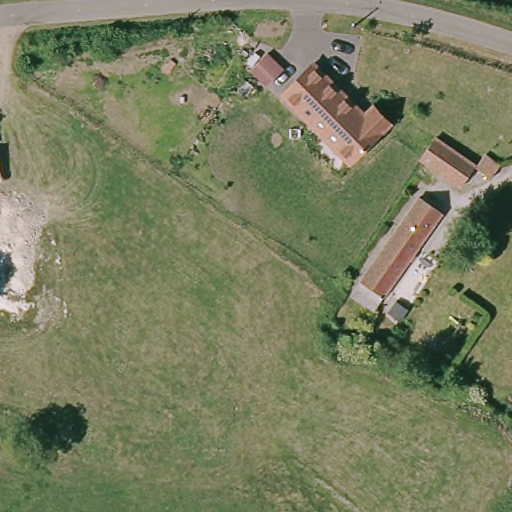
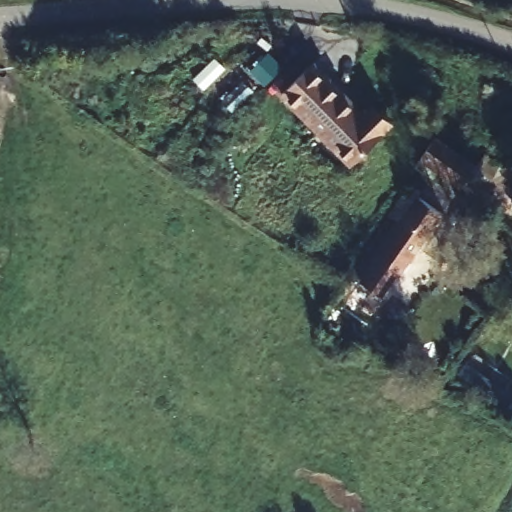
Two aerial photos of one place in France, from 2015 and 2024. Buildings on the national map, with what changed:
unchanged [(312,60),(363,108),(372,98),(394,121),(352,166),(279,91),(312,60)]
unchanged [(472,177),(459,192),(421,157),(434,141),(472,177)]
unchanged [(492,180),(485,189),(472,177),(480,169),(492,180)]
unchanged [(422,197),(447,214),(391,301),(381,316),(355,299),(367,281),(422,197)]

